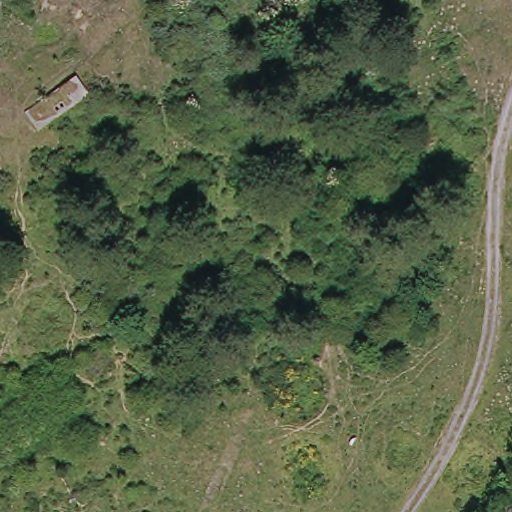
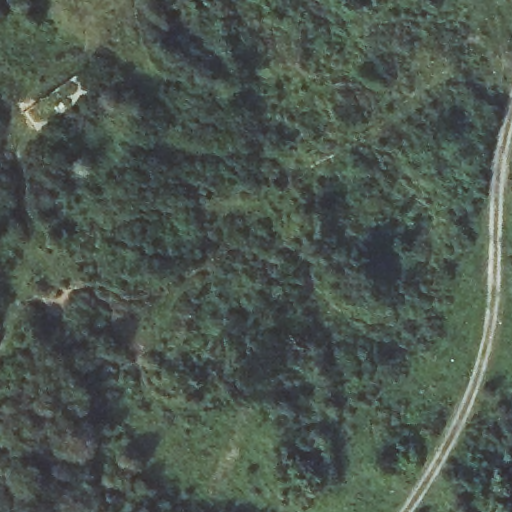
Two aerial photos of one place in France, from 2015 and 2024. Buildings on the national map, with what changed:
unchanged [(74,70),(89,90),(34,124),(22,100),(74,70)]

